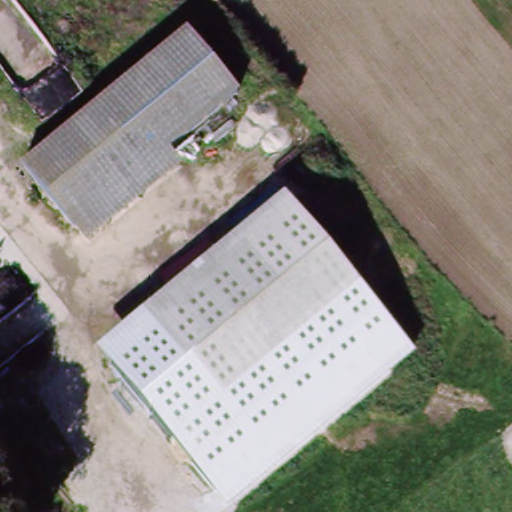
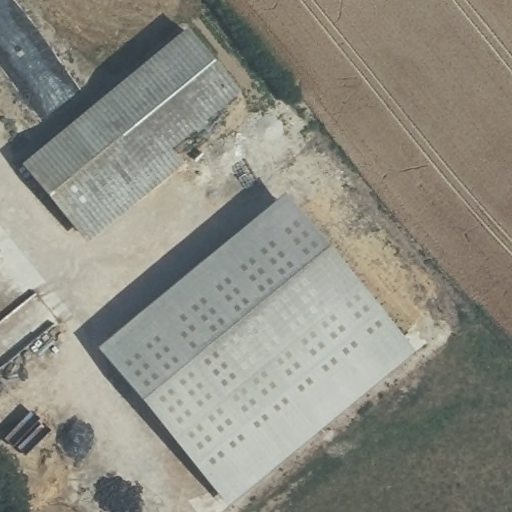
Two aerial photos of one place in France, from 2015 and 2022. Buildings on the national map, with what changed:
unchanged [(185,35),(238,100),(169,158),(181,172),(86,251),(20,171),(185,35)]
unchanged [(358,287),(215,404),(141,312),(282,195),(358,287)]
unchanged [(215,404),(358,287),(416,354),(228,509),(95,351),(142,314),(215,404)]

